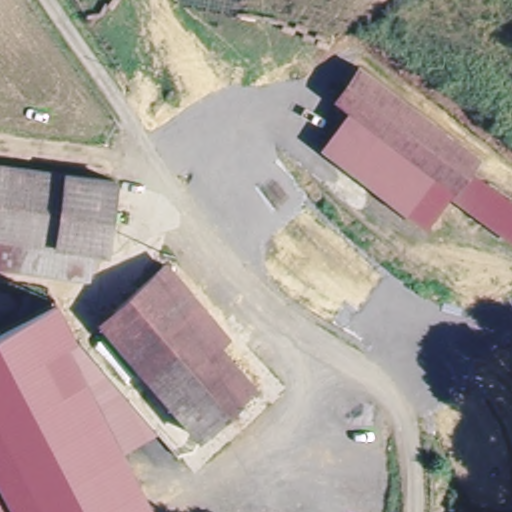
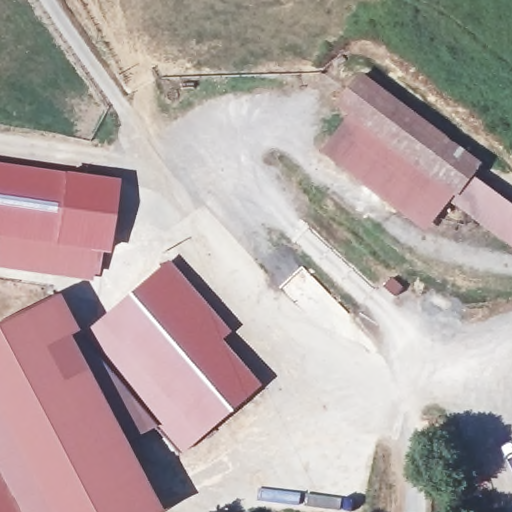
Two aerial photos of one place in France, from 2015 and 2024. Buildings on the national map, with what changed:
unchanged [(485,164),(475,176),(512,204),(512,247),(452,201),(426,232),(321,153),(349,117),(335,105),(360,74),(485,164)]
unchanged [(100,246),(83,266),(80,279),(71,277),(0,267),(0,162),(109,177),(100,246)]
unchanged [(196,434),(100,320),(160,269),(257,383),(196,434)]
unchanged [(152,428),(122,445),(158,512),(0,512),(0,327),(56,298),(74,333),(152,428)]

